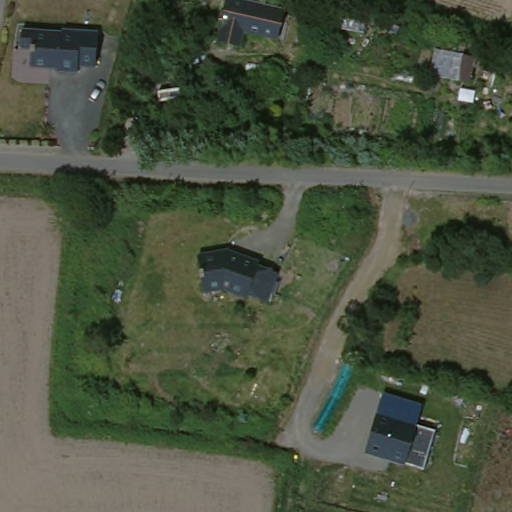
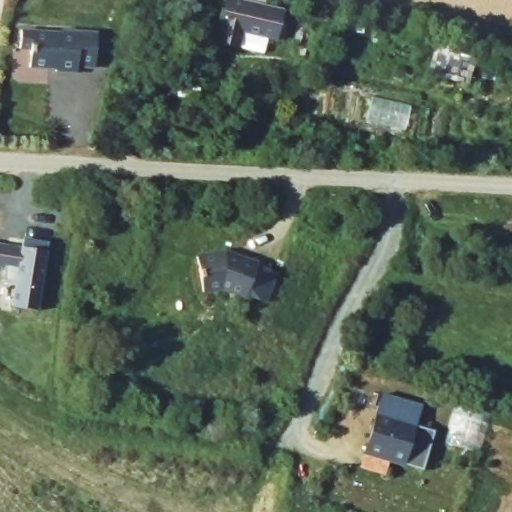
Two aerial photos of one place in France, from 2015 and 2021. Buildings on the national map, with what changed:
unchanged [(263,7),(283,12),(275,44),(242,34),(237,49),(215,42),(227,0),(265,0),(263,7)]
unchanged [(50,73),(50,70),(24,67),(26,50),(15,48),(17,30),(56,34),(57,31),(92,35),(89,70),(71,69),(71,75),(50,73)]
new [(5,280),(7,267),(0,266),(0,243),(24,246),(25,239),(49,242),(47,251),(38,310),(12,306),(16,281),(5,280)]
unchanged [(227,255),(259,266),(258,268),(277,275),(266,303),(247,297),(247,300),(224,291),(204,296),(197,261),(227,255)]
unchanged [(422,470),(365,453),(383,394),(421,406),(415,425),(435,431),(422,470)]

